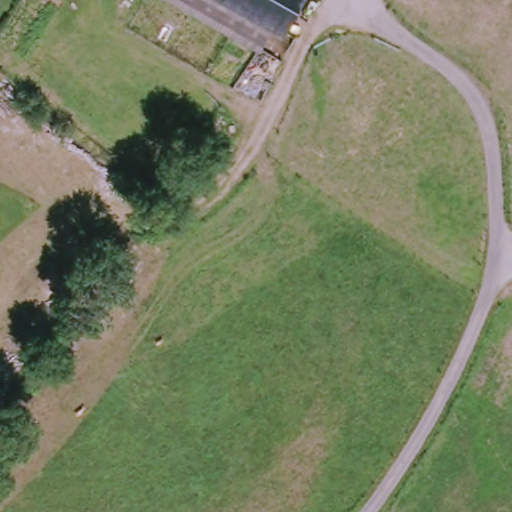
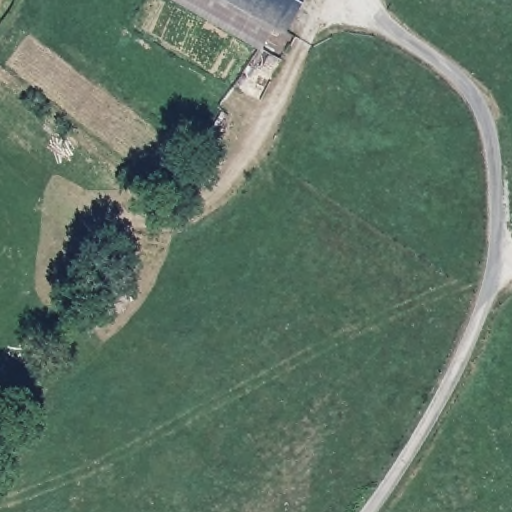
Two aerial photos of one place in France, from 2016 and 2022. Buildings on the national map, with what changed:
unchanged [(184,0),(240,0),(278,21),(265,45),(184,0)]
unchanged [(278,21),(240,0),(306,0),(290,25),(278,21)]

